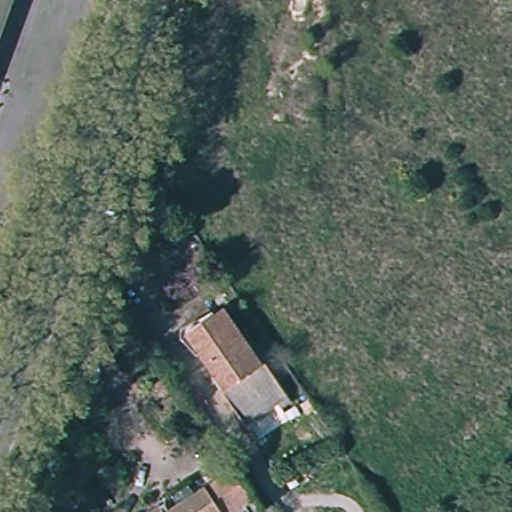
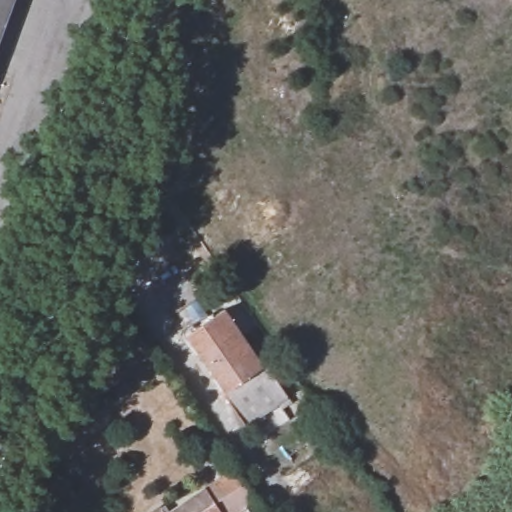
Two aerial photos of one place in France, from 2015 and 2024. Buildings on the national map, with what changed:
unchanged [(0,35),(0,0),(13,0),(0,35)]
unchanged [(252,347),(254,346),(287,395),(246,422),(212,375),(214,372),(175,315),(211,291),(252,347)]
unchanged [(245,512),(242,508),(236,512),(167,512),(236,469),(263,512),(245,512)]
unchanged [(161,512),(152,512),(158,508),(161,512)]

